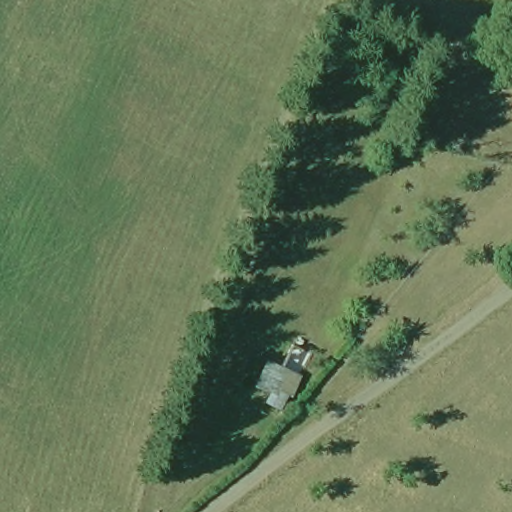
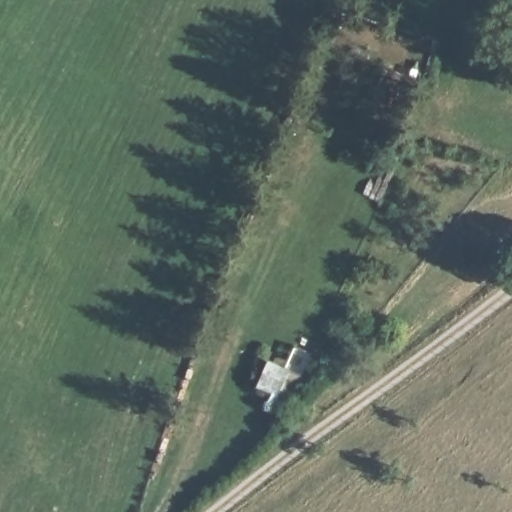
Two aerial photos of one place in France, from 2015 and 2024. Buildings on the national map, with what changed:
unchanged [(300,374),(304,376),(296,396),(285,392),(279,407),(267,403),(270,389),(257,383),(267,356),(285,361),(294,343),(312,350),(300,374)]

